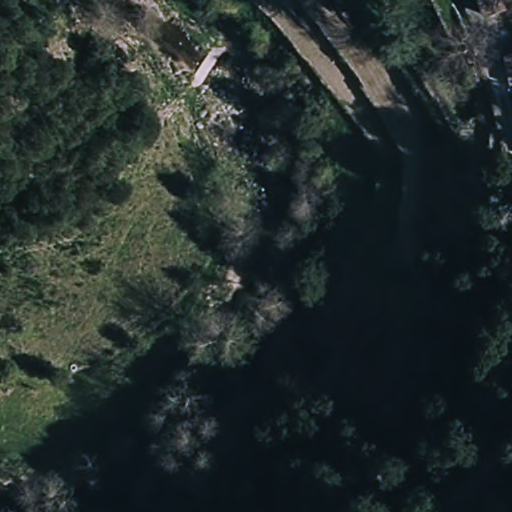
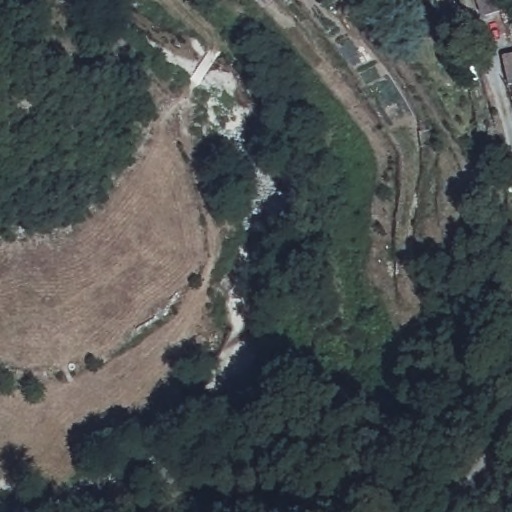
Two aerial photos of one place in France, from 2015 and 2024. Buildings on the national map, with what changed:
unchanged [(488,12),(483,0),(511,0),(512,2),(488,12)]
unchanged [(504,50),(512,47),(512,80),(504,50)]

